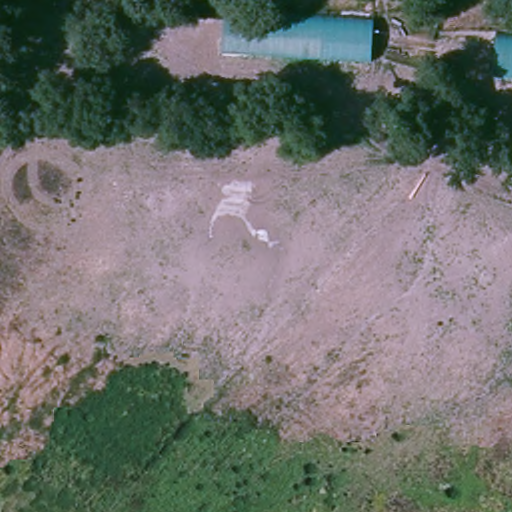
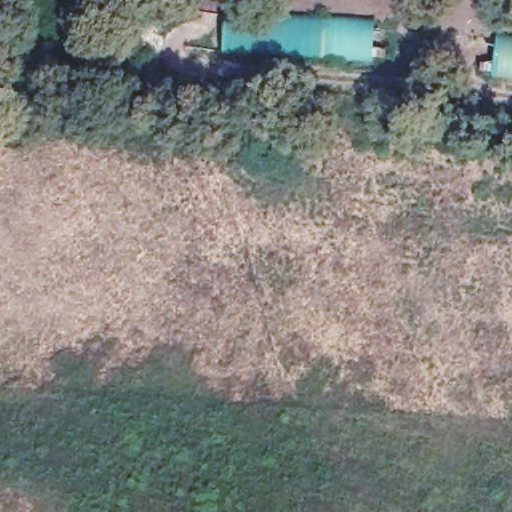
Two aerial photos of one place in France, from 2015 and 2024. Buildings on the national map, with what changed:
unchanged [(376,21),(372,61),(222,52),(225,8),(376,21)]
unchanged [(512,78),(493,75),(498,34),(512,35),(512,78)]

